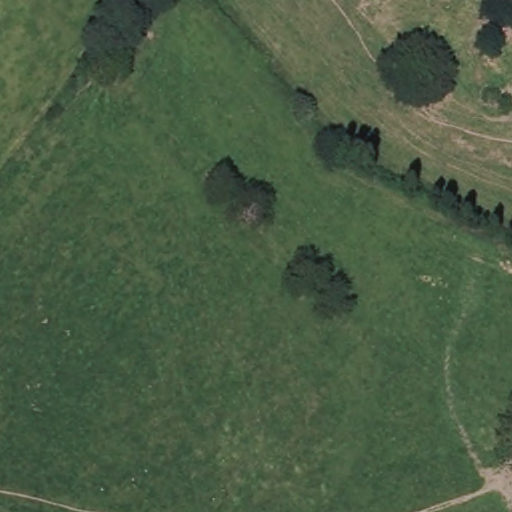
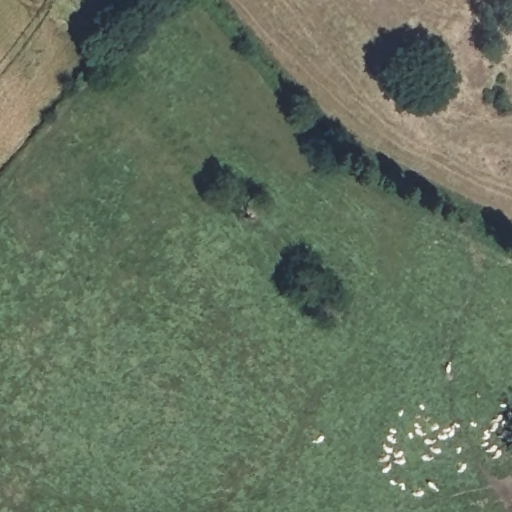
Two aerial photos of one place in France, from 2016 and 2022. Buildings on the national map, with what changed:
[]

